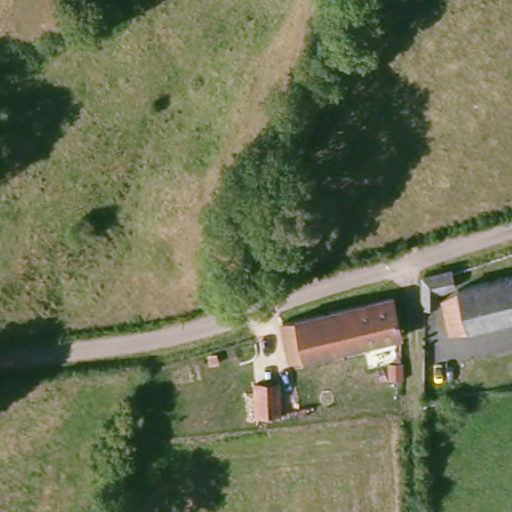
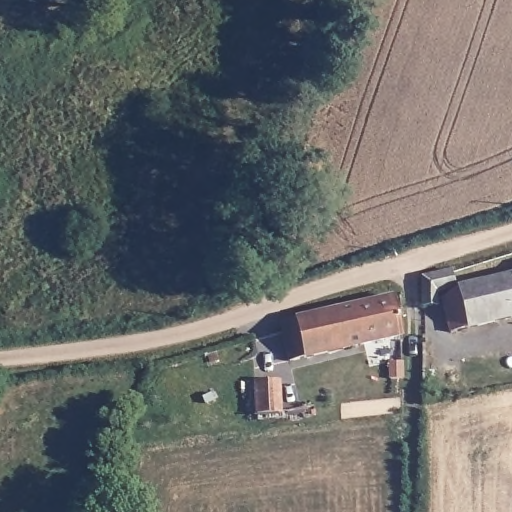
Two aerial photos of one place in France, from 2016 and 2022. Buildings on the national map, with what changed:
unchanged [(460,288),(444,295),(442,305),(439,308),(432,308),(428,305),(421,283),(455,273),(460,288)]
unchanged [(462,337),(450,303),(512,280),(512,319),(462,337)]
unchanged [(282,326),(399,297),(409,335),(290,362),(282,326)]
unchanged [(397,391),(394,376),(412,371),(415,386),(397,391)]
unchanged [(272,424),(262,393),(292,384),(299,417),(272,424)]

